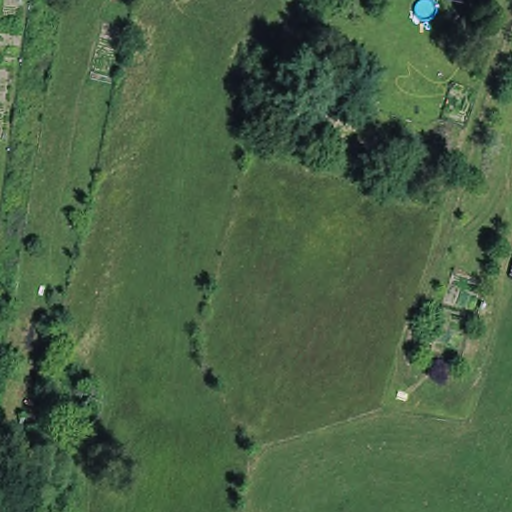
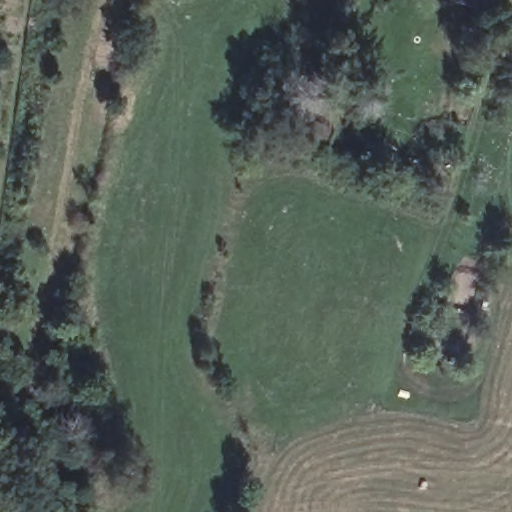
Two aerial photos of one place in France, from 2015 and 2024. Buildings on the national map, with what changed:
unchanged [(482,6),(461,0),(484,0),(482,6)]

